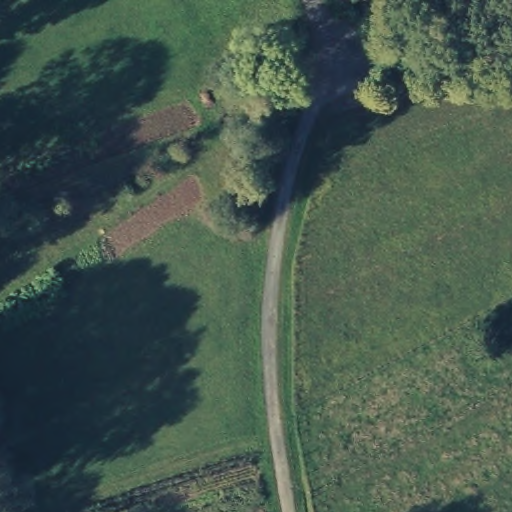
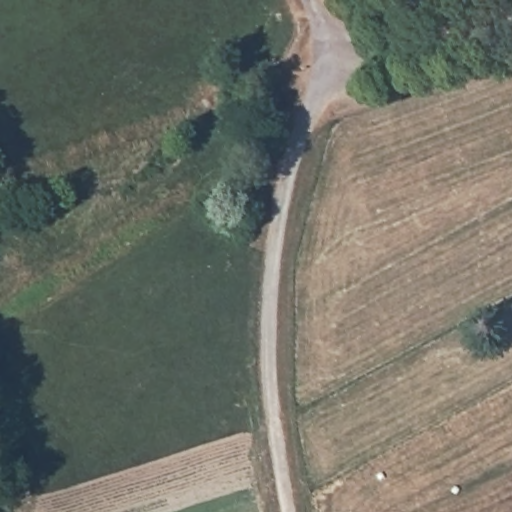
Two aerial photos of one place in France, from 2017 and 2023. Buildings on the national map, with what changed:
[]

